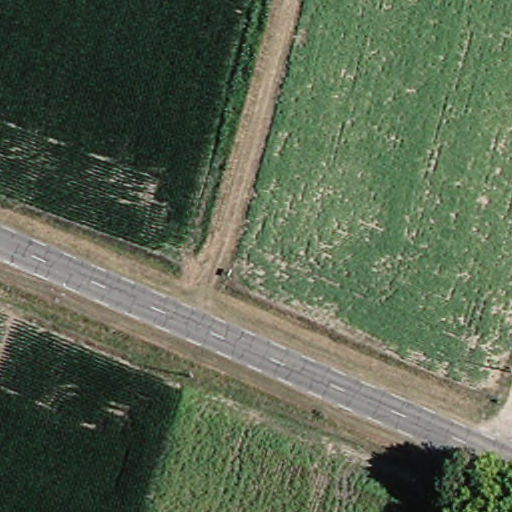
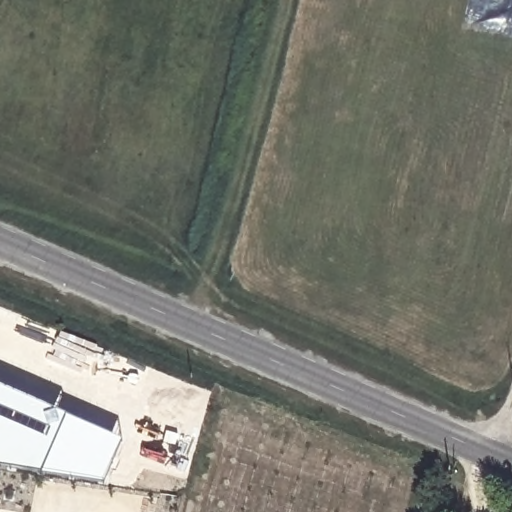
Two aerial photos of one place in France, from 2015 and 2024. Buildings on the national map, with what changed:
new [(122,440),(105,483),(42,474),(1,467),(0,466),(0,387),(67,416),(122,440)]

